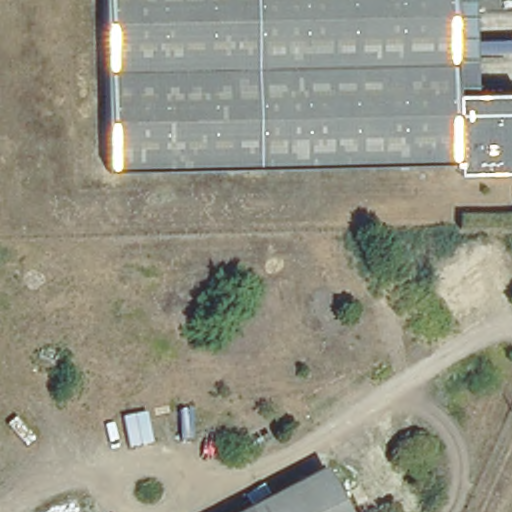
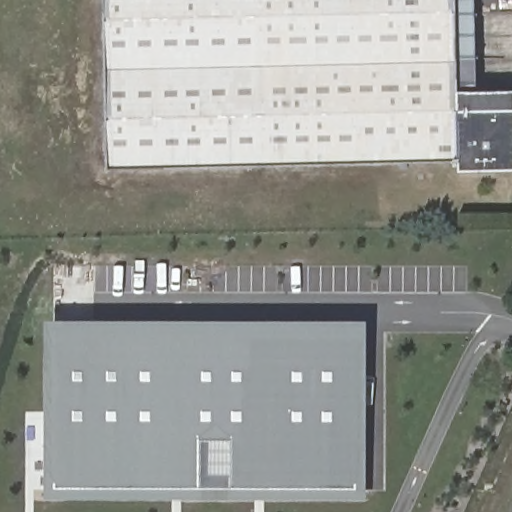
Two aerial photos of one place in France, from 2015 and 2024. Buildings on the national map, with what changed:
unchanged [(446,71),(447,102),(502,101),(504,178),(448,180),(447,172),(261,177),(96,181),(96,177),(92,0),(444,0),(446,71)]
unchanged [(465,70),(446,71),(444,0),(463,0),(465,70)]
new [(477,93),(512,92),(512,172),(504,172),(502,101),(447,102),(446,71),(465,70),(463,0),(474,0),(477,93)]
demolished [(486,239),(505,276),(493,282),(498,291),(446,316),(423,274),(486,239)]
new [(365,500),(43,500),(44,321),(366,321),(365,500)]
demolished [(241,512),(315,474),(334,512),(241,512)]

